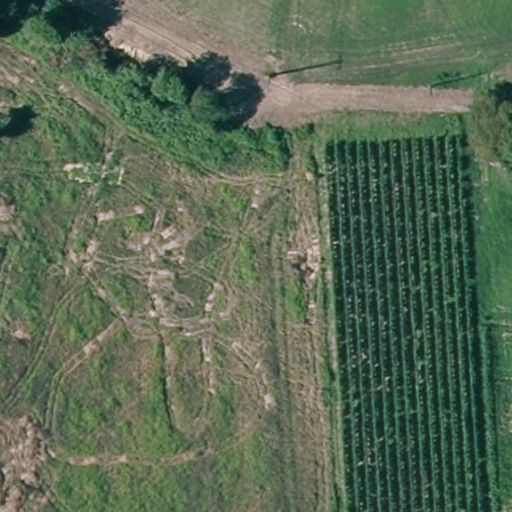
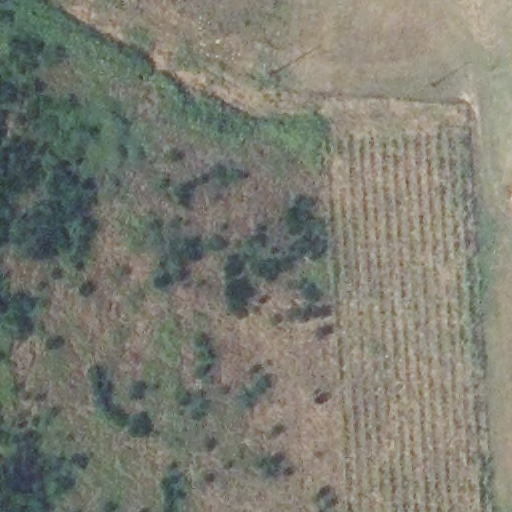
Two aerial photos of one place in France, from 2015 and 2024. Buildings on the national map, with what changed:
unchanged [(338,115),(337,102),(347,100),(351,114),(338,115)]

